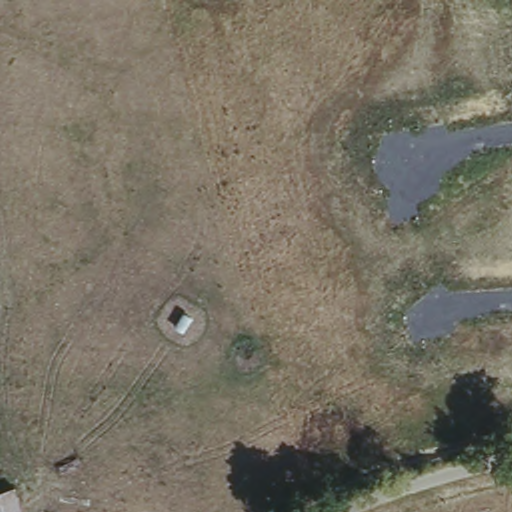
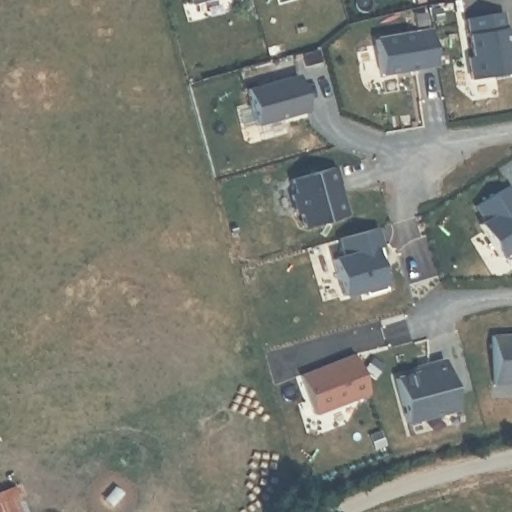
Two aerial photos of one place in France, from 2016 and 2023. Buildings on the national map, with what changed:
new [(191,0),(200,0),(191,2),(191,0)]
new [(506,27),(508,26),(512,52),(512,72),(475,78),(470,56),(475,55),(469,17),(504,11),(506,27)]
new [(431,29),(437,65),(381,74),(375,38),(431,29)]
new [(299,72),(310,109),(258,124),(248,87),(299,72)]
new [(346,212),(301,226),(289,180),(335,169),(346,212)]
new [(512,250),(500,257),(478,224),(482,220),(473,206),(510,188),(512,193),(512,250)]
new [(383,246),(380,247),(387,275),(381,277),(383,289),(365,295),(362,291),(343,297),(332,259),(340,256),(335,239),(377,226),(383,246)]
new [(492,337),(512,336),(512,385),(495,386),(492,337)]
new [(368,396),(313,415),(301,375),(352,356),(368,396)]
new [(416,365),(429,362),(445,357),(459,406),(408,420),(397,376),(418,371),(416,365)]
unchanged [(22,512),(0,512),(0,491),(15,487),(22,512)]

